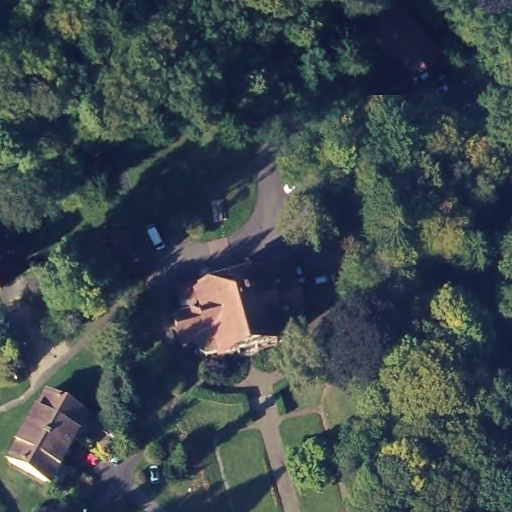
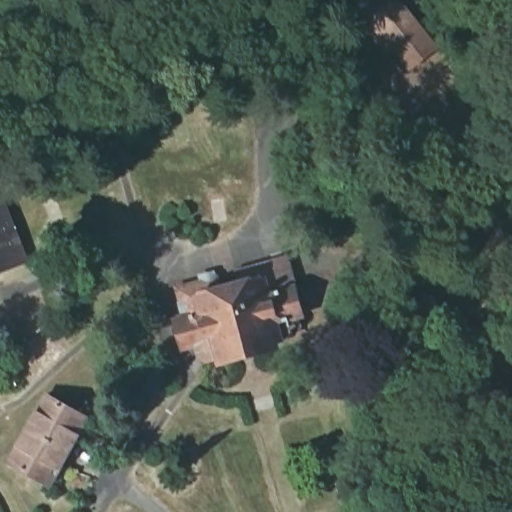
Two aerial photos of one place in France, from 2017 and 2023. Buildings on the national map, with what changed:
unchanged [(435,38),(410,58),(395,40),(387,46),(364,18),(371,12),(362,0),(404,0),(435,38)]
unchanged [(0,269),(0,197),(5,195),(22,236),(29,259),(0,269)]
unchanged [(291,322),(277,326),(281,338),(278,344),(265,348),(266,351),(207,367),(206,364),(193,367),(187,364),(184,351),(171,354),(163,325),(173,323),(165,293),(205,282),(208,294),(228,288),(225,277),(275,263),(291,322)]
unchanged [(90,419),(53,486),(12,463),(50,396),(90,419)]

